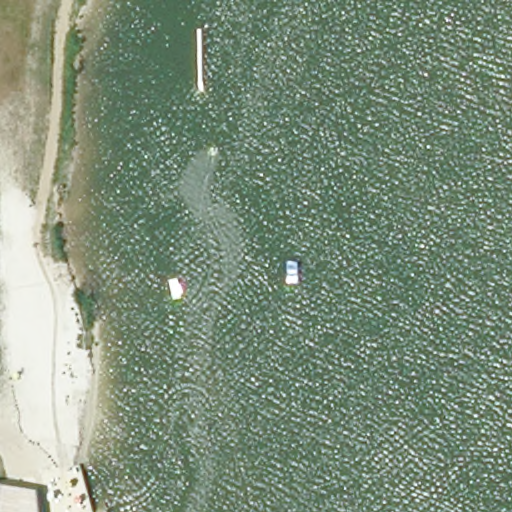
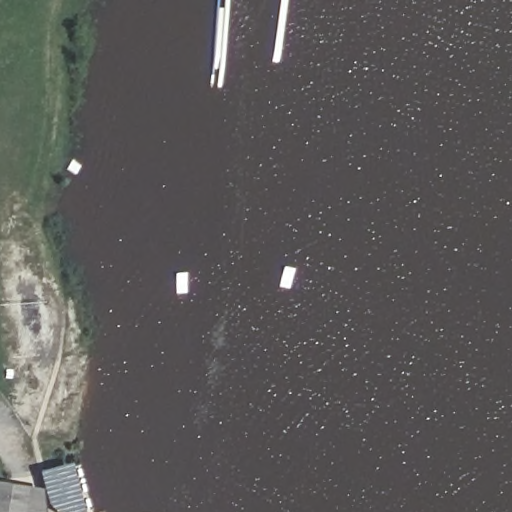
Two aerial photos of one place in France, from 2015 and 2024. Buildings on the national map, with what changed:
unchanged [(44,512),(0,512),(0,484),(41,491),(44,512)]

